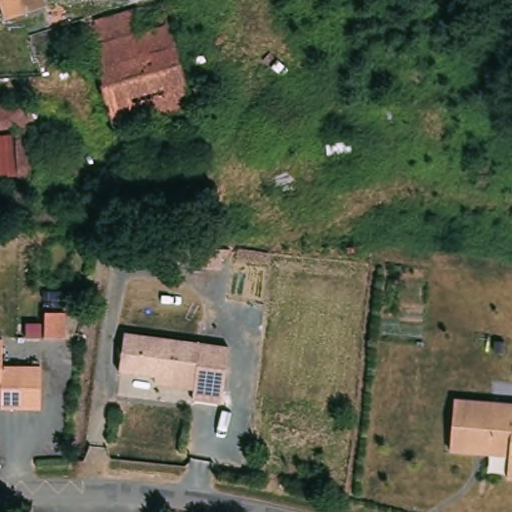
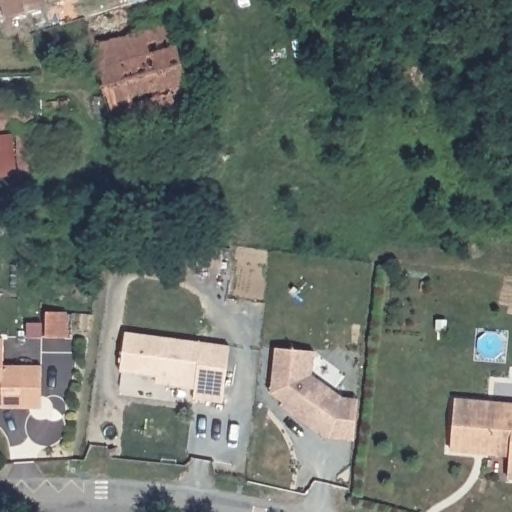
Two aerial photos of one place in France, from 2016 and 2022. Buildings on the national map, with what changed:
unchanged [(50,11),(8,23),(1,0),(46,0),(50,11)]
unchanged [(104,70),(90,23),(167,1),(180,49),(104,70)]
unchanged [(144,121),(120,127),(104,70),(180,49),(186,69),(188,80),(190,85),(211,82),(213,102),(208,104),(196,106),(144,121)]
unchanged [(17,131),(0,133),(0,104),(35,104),(42,175),(22,177),(17,131)]
unchanged [(200,393),(200,386),(182,384),(161,382),(163,371),(123,368),(128,330),(233,340),(229,368),(227,395),(200,393)]
unchanged [(28,410),(6,411),(5,399),(0,400),(0,342),(3,342),(5,369),(41,367),(42,378),(44,409),(28,410)]
new [(326,439),(279,406),(282,403),(269,393),(273,348),(313,352),(311,375),(342,397),(358,400),(354,441),(326,439)]
unchanged [(512,477),(508,476),(510,453),(453,449),(455,396),(512,401),(512,477)]

